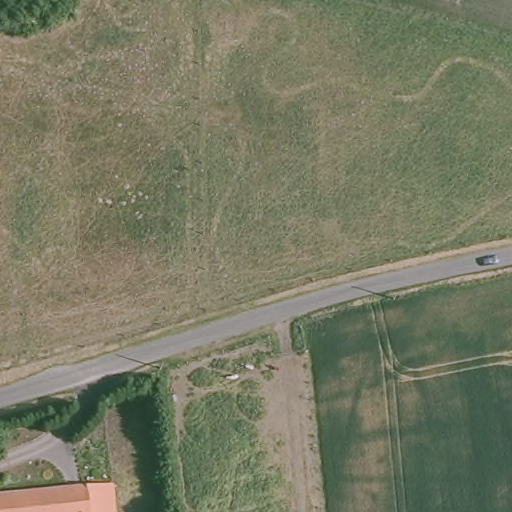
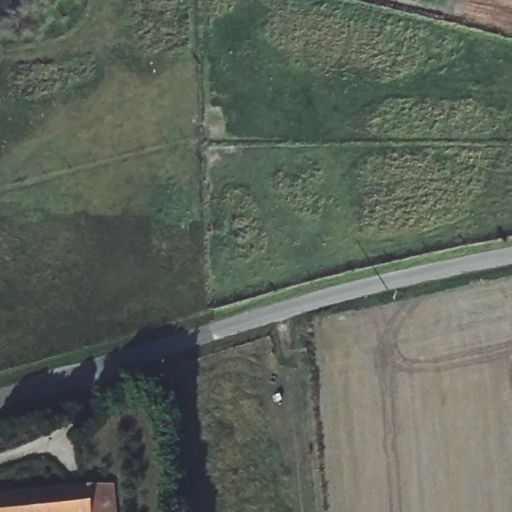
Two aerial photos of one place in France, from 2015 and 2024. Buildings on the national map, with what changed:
unchanged [(0,512),(0,495),(107,483),(110,512),(0,512)]

